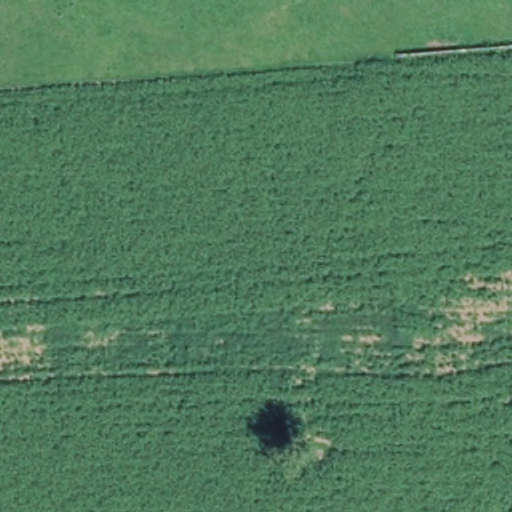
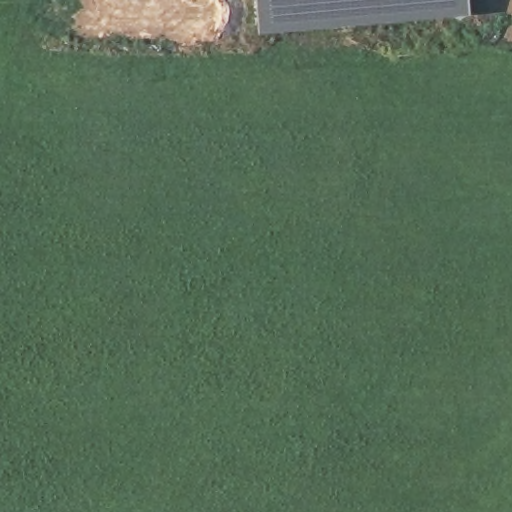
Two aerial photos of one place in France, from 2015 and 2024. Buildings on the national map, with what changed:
new [(469,0),(470,13),(258,32),(256,0),(469,0)]

